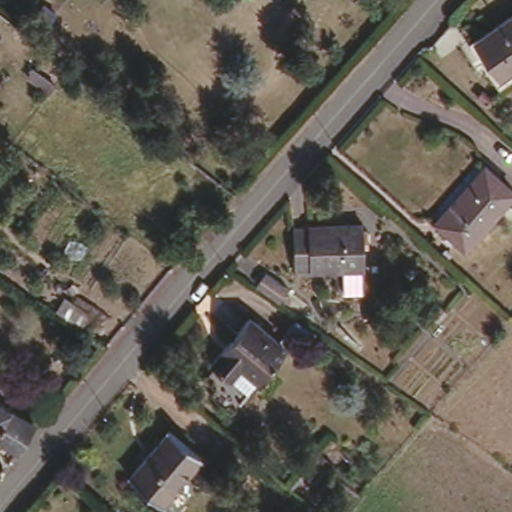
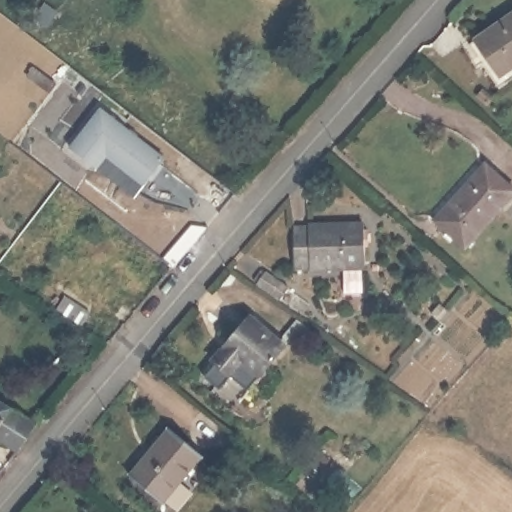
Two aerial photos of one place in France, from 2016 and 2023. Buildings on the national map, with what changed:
unchanged [(512,4),(512,57),(496,68),(472,31),(512,4)]
new [(102,103),(167,153),(145,182),(110,153),(97,166),(72,144),(102,103)]
unchanged [(436,214),(486,158),(512,183),(512,190),(466,242),(436,214)]
unchanged [(345,285),(345,259),(295,259),(295,213),(365,213),(365,259),(362,259),(362,285),(345,285)]
unchanged [(272,260),(295,277),(286,290),(262,273),(272,260)]
unchanged [(97,303),(89,315),(65,300),(72,288),(97,303)]
unchanged [(437,304),(445,295),(452,302),(443,311),(437,304)]
unchanged [(286,336),(248,380),(213,350),(251,305),(286,336)]
unchanged [(0,400),(32,419),(13,447),(0,439),(0,400)]
unchanged [(170,420),(201,447),(162,494),(131,467),(170,420)]

